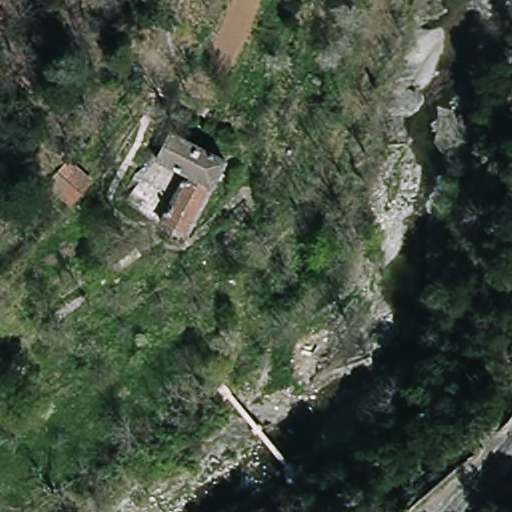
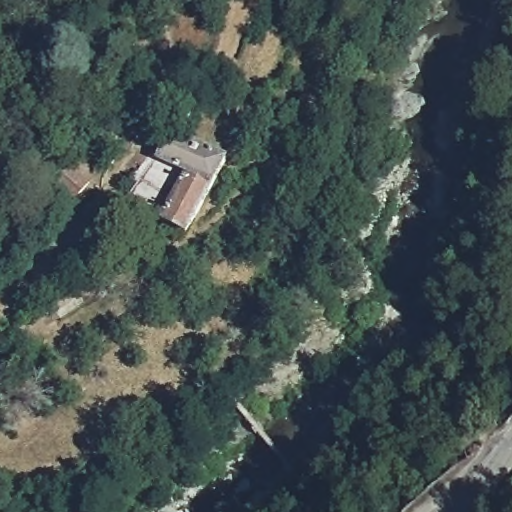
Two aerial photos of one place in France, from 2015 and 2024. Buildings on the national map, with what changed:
unchanged [(137,196),(162,157),(173,132),(176,127),(188,132),(186,137),(232,158),(196,235),(173,225),(155,218),(133,203),(137,196)]
unchanged [(88,214),(61,195),(81,170),(106,188),(88,214)]

